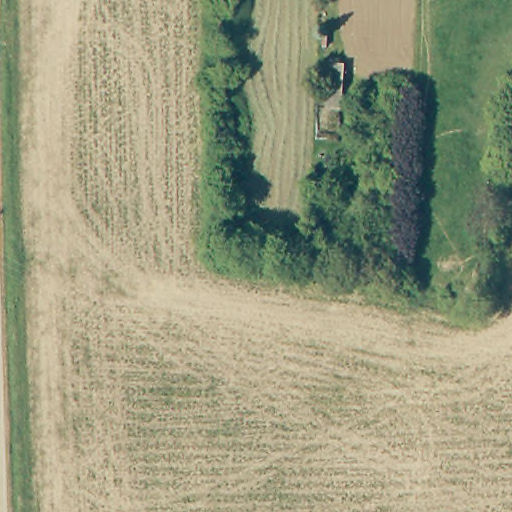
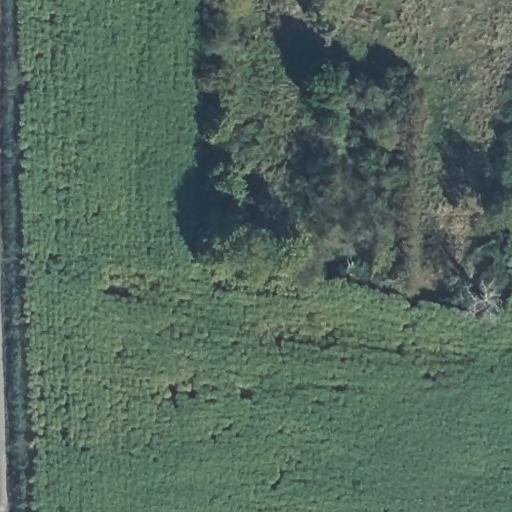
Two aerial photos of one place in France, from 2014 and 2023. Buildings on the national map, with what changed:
unchanged [(341,108),(326,107),(330,62),(344,64),(341,108)]

